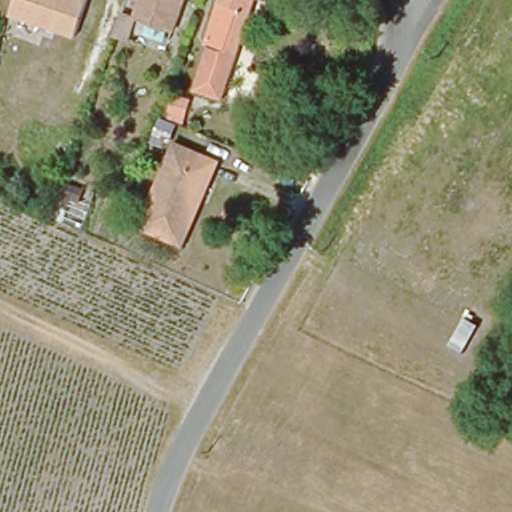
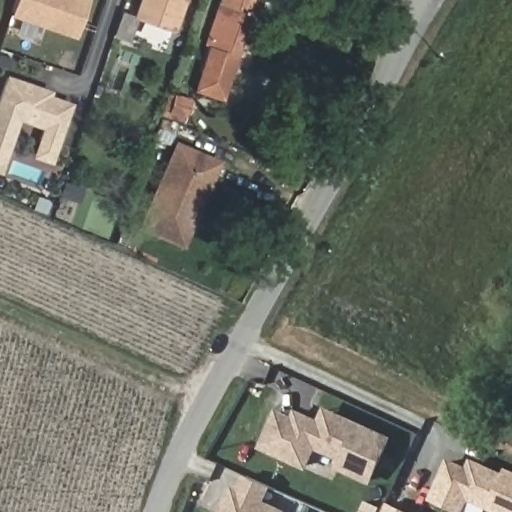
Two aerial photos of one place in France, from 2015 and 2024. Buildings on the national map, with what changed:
unchanged [(77,38),(10,15),(16,0),(89,0),(77,38)]
unchanged [(142,0),(183,0),(172,29),(171,32),(134,20),(126,42),(108,36),(116,11),(135,18),(136,15),(142,0)]
unchanged [(195,77),(225,0),(259,0),(225,89),(195,77)]
new [(73,102),(51,164),(32,156),(42,127),(19,120),(1,174),(0,174),(0,91),(5,75),(52,89),(50,95),(73,102)]
unchanged [(184,126),(161,120),(169,91),(192,98),(184,126)]
unchanged [(142,222),(179,142),(212,157),(221,161),(198,210),(184,241),(142,222)]
unchanged [(62,188),(84,197),(79,207),(58,199),(62,188)]
new [(307,468),(260,447),(279,407),(293,415),(297,407),(319,419),(324,405),(394,437),(372,483),(337,468),(342,460),(316,448),(307,468)]
new [(449,457),(468,467),(473,457),(505,472),(508,467),(512,469),(512,512),(497,512),(471,500),(465,512),(462,512),(431,498),(449,457)]
new [(289,510),(288,512),(222,512),(235,485),(239,487),(245,475),(274,486),(267,501),(289,510)]
new [(413,512),(385,512),(389,501),(413,512)]

